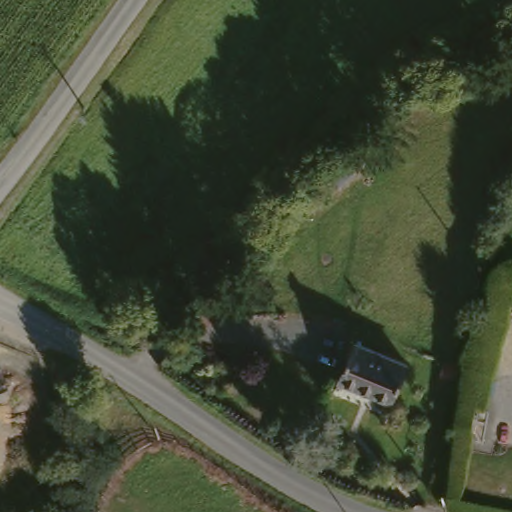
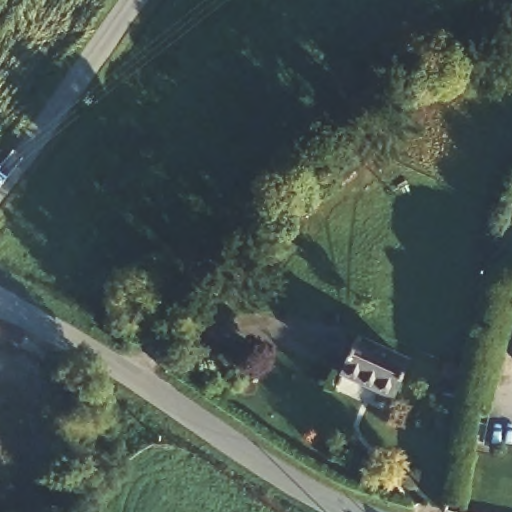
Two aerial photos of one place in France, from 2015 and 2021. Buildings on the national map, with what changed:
unchanged [(412,363),(393,395),(344,367),(363,336),(412,363)]

